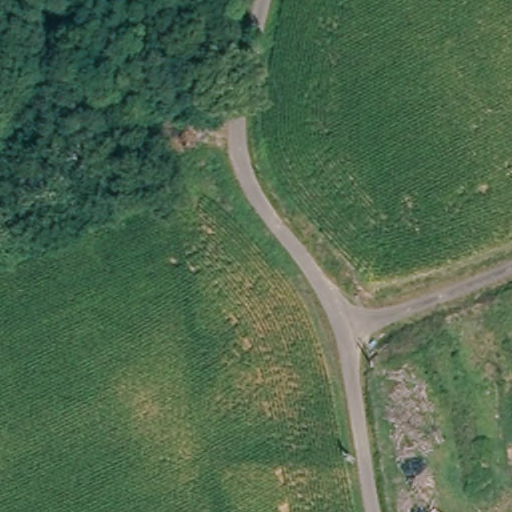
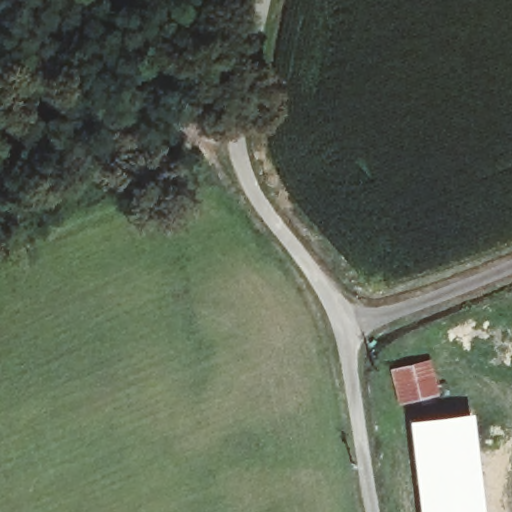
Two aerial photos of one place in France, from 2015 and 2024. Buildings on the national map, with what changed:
new [(432,357),(440,395),(396,403),(388,367),(432,357)]
new [(473,411),(484,512),(418,512),(407,418),(473,411)]

